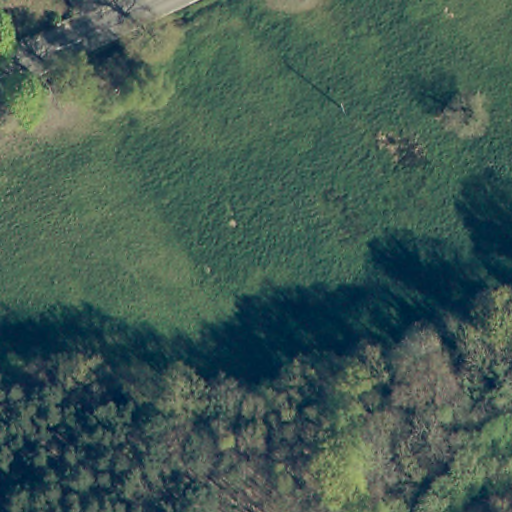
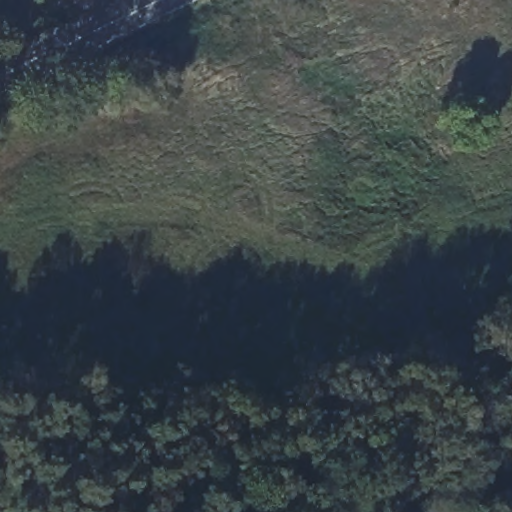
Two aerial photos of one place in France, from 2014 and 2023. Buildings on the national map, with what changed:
unchanged [(65,0),(118,0),(110,4),(111,9),(77,23),(65,0)]

